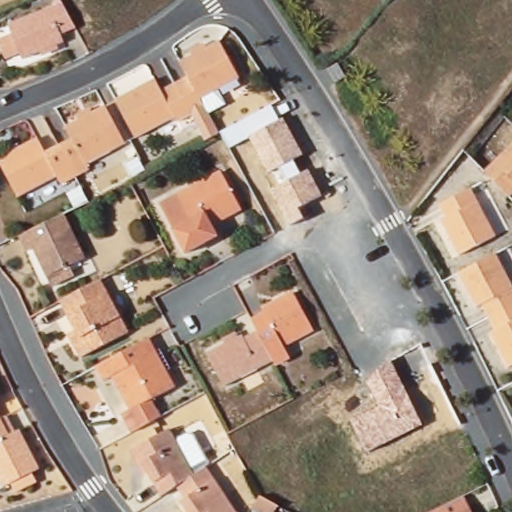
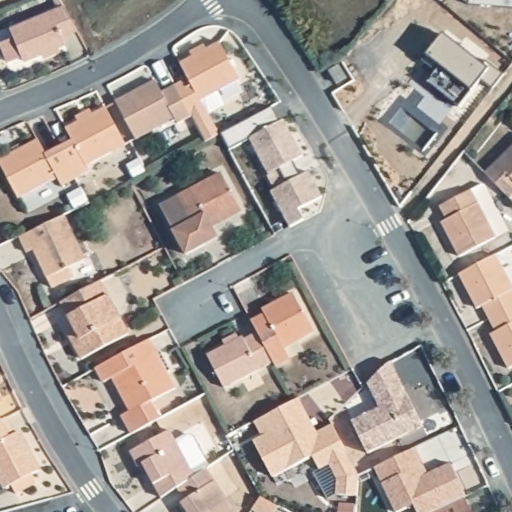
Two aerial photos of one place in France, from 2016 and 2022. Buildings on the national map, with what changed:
unchanged [(46,59),(44,53),(27,60),(26,55),(12,61),(3,40),(17,34),(12,24),(58,6),(55,0),(64,0),(66,3),(81,29),(64,36),(67,44),(60,46),(63,52),(46,59)]
new [(465,0),(512,0),(512,7),(469,4),(465,0)]
new [(442,32),(446,35),(481,63),(484,59),(503,74),(491,89),(480,80),(458,107),(443,96),(456,79),(439,66),(435,72),(420,60),(434,42),(442,32)]
unchanged [(184,68),(195,61),(191,55),(206,48),(209,54),(221,47),(242,84),(203,105),(207,113),(198,118),(181,87),(191,82),(184,68)]
new [(434,71),(435,72),(439,66),(456,79),(443,96),(426,82),(434,71)]
unchanged [(179,128),(177,123),(140,143),(120,105),(158,85),(163,96),(181,87),(198,118),(179,128)]
unchanged [(198,118),(207,113),(203,105),(222,95),(227,105),(210,113),(221,132),(205,142),(194,120),(198,118)]
unchanged [(281,120),(285,118),(304,154),(294,160),(301,175),(311,170),(323,196),(300,208),(305,218),(290,225),(270,189),(288,181),(280,167),(269,173),(250,140),(232,149),(222,132),(273,106),(281,120)]
unchanged [(122,145),(120,146),(83,165),(86,170),(61,184),(56,175),(51,178),(30,141),(37,138),(44,152),(70,139),(64,128),(74,122),(72,115),(87,108),(90,114),(100,108),(101,108),(122,145)]
unchanged [(16,197),(0,165),(0,158),(30,141),(51,178),(16,197)]
unchanged [(485,176),(512,149),(512,199),(510,202),(485,176)]
unchanged [(217,237),(185,254),(159,205),(175,196),(219,174),(240,212),(226,219),(211,227),(217,237)]
unchanged [(492,232),(457,251),(438,216),(444,212),(439,201),(468,186),(492,232)]
unchanged [(86,256),(69,265),(74,276),(51,287),(33,250),(27,254),(19,236),(65,214),(86,256)]
unchanged [(490,334),(494,332),(480,306),(475,308),(467,293),(458,274),(496,255),(506,273),(512,285),(512,368),(509,370),(505,363),(490,334)]
unchanged [(77,330),(62,301),(104,279),(132,335),(84,360),(75,342),(71,334),(77,330)]
unchanged [(277,341),(265,348),(256,331),(251,321),(264,314),(261,310),(293,293),(313,330),(296,339),(281,347),(277,341)]
unchanged [(205,354),(223,345),(219,338),(233,331),(236,338),(240,335),(241,339),(256,331),(265,348),(272,361),(222,388),(205,354)]
unchanged [(170,369),(173,367),(182,383),(160,395),(169,412),(162,416),(140,428),(130,409),(137,406),(119,372),(110,377),(103,363),(153,336),(170,369)]
unchanged [(423,425),(367,453),(351,419),(381,406),(368,381),(391,358),(423,425)]
new [(317,437),(315,433),(331,425),(333,429),(357,474),(356,496),(335,494),(327,499),(313,472),(318,470),(311,456),(271,476),(252,440),(267,433),(259,418),(298,399),(317,437)]
unchanged [(193,471),(175,482),(160,493),(148,469),(142,459),(137,461),(128,446),(168,424),(169,427),(193,471)]
unchanged [(6,426),(26,465),(20,469),(25,477),(5,488),(0,479),(0,430),(6,426)]
new [(418,512),(414,501),(396,512),(376,466),(415,446),(427,473),(450,462),(466,496),(464,498),(434,512),(418,512)]
unchanged [(181,498),(183,496),(175,482),(193,471),(204,463),(231,508),(236,512),(182,512),(181,511),(186,508),(181,498)]
unchanged [(256,512),(260,507),(267,496),(283,505),(279,512),(256,512)]
unchanged [(470,512),(434,512),(464,498),(470,512)]

